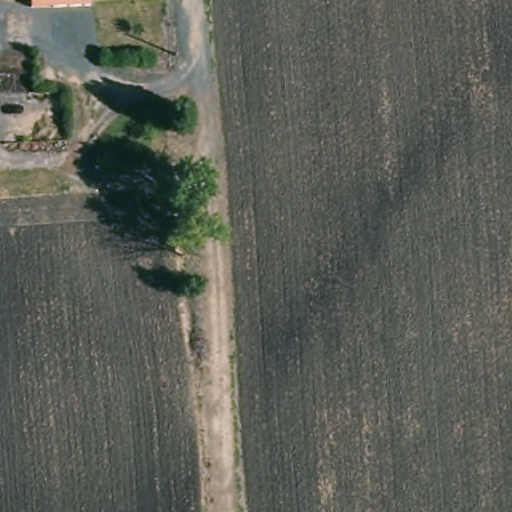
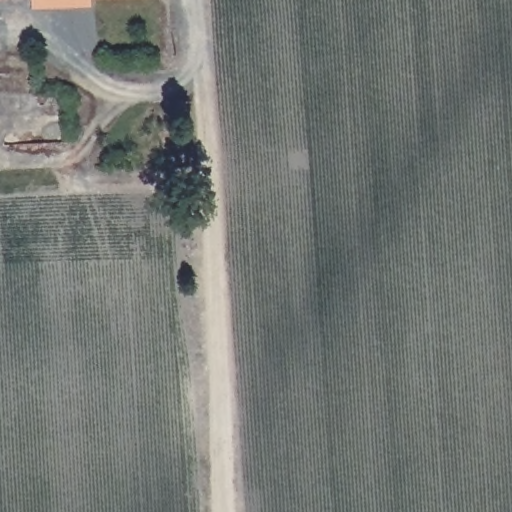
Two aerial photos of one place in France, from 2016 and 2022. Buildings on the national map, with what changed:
unchanged [(165,0),(38,3),(39,56),(11,56),(9,4),(0,5),(0,0),(172,0),(173,1),(165,0)]

